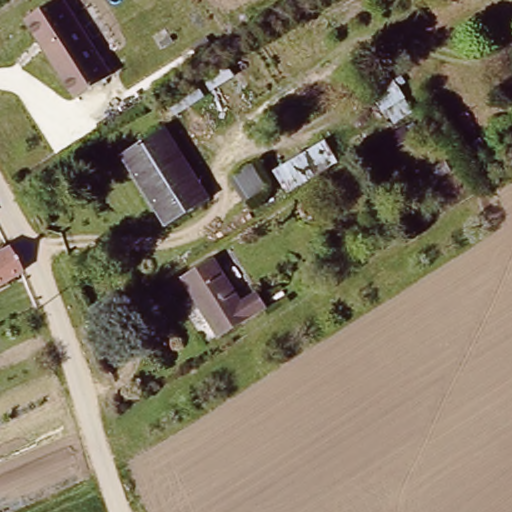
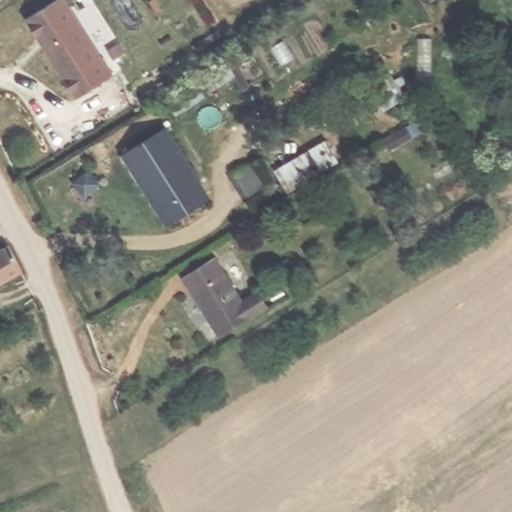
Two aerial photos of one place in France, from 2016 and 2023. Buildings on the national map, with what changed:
unchanged [(74,96),(29,18),(54,0),(70,0),(112,70),(74,96)]
unchanged [(122,152),(164,126),(210,202),(167,228),(122,152)]
unchanged [(0,283),(0,249),(7,245),(21,272),(0,283)]
unchanged [(218,328),(185,275),(229,248),(262,300),(218,328)]

